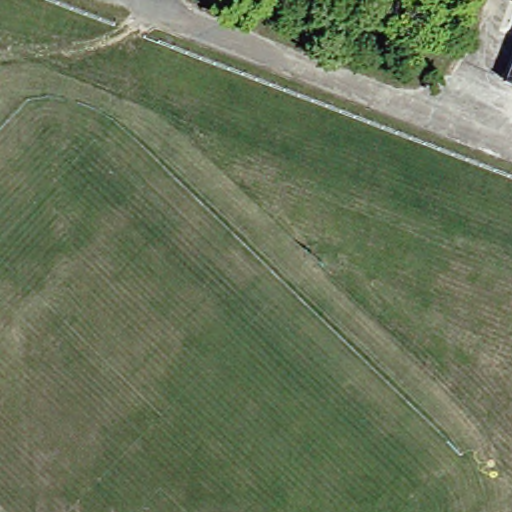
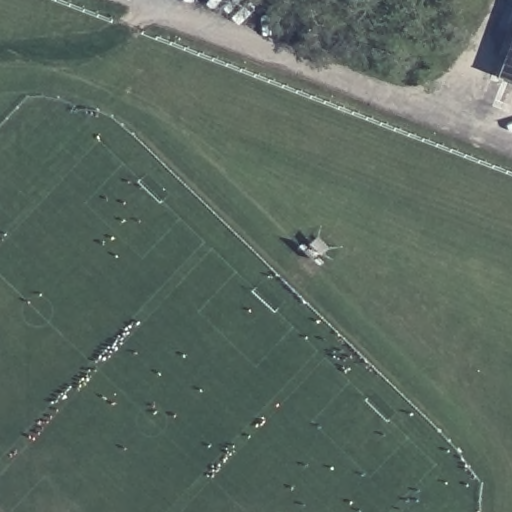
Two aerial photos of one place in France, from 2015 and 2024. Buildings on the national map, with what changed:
unchanged [(497,77),(512,42),(512,83),(497,77)]

